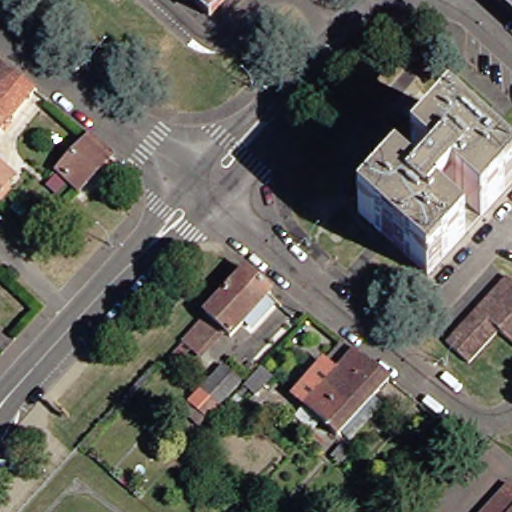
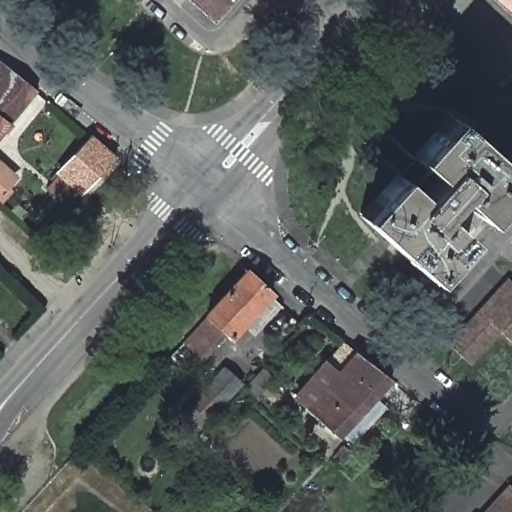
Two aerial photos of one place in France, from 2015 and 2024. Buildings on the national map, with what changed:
unchanged [(183,0),(219,0),(203,18),(183,0)]
unchanged [(490,0),(512,0),(512,20),(498,8),(490,0)]
unchanged [(5,72),(25,89),(27,90),(0,124),(0,68),(5,72)]
unchanged [(386,174),(343,135),(359,116),(402,155),(386,174)]
unchanged [(439,116),(510,180),(419,279),(348,215),(386,174),(402,155),(439,116)]
unchanged [(76,192),(53,171),(85,136),(109,157),(76,192)]
unchanged [(3,180),(0,185),(0,177),(3,180)]
unchanged [(268,295),(229,338),(221,330),(205,316),(204,315),(245,271),(268,295)]
unchanged [(512,355),(511,355),(490,336),(461,369),(438,347),(499,281),(512,293),(512,355)]
unchanged [(185,352),(163,376),(158,371),(180,347),(178,346),(205,316),(221,330),(194,360),(185,352)]
unchanged [(342,433),(339,437),(294,399),(341,343),(388,380),(374,396),(384,404),(352,441),(342,433)]
unchanged [(215,368),(231,383),(199,420),(182,404),(215,368)]
unchanged [(294,399),(287,407),(281,402),(287,394),(294,399)]
unchanged [(496,491),(491,486),(496,481),(512,495),(512,512),(478,512),(496,491)]

